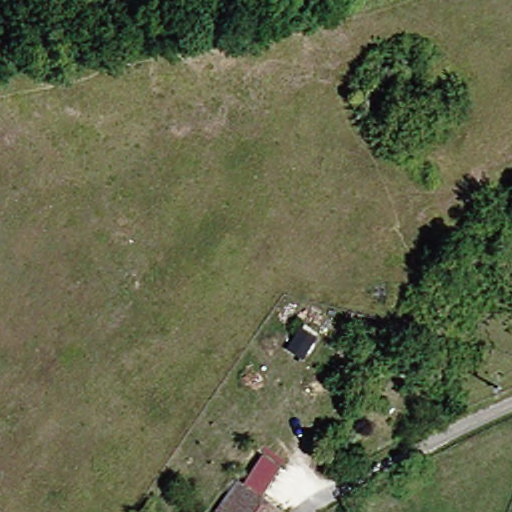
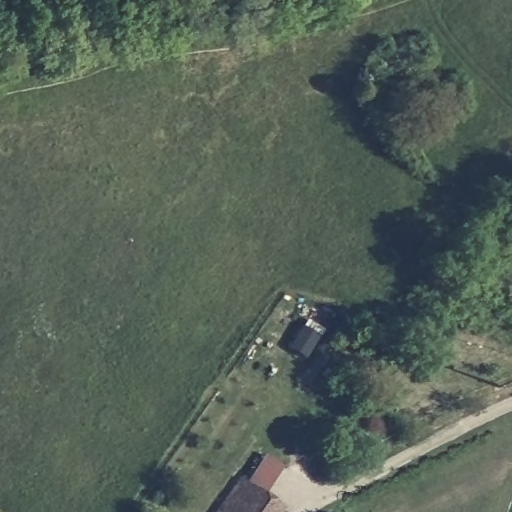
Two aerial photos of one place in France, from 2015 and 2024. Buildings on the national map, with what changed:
unchanged [(294,508),(291,512),(228,512),(252,478),(294,508)]

